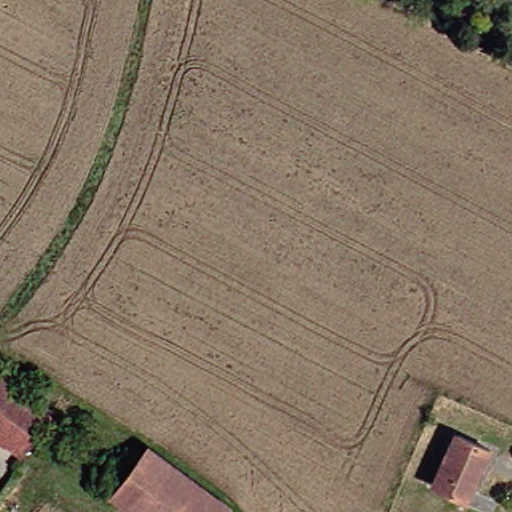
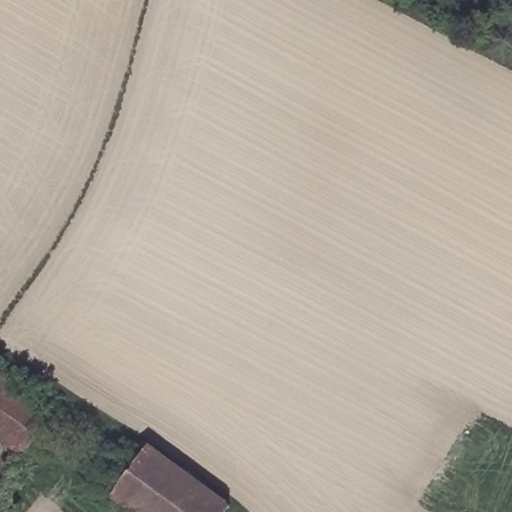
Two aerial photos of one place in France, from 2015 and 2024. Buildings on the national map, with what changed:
unchanged [(26,457),(0,439),(0,377),(55,416),(26,457)]
demolished [(493,447),(470,496),(436,480),(460,431),(493,447)]
unchanged [(155,441),(234,500),(225,512),(141,512),(116,493),(155,441)]

